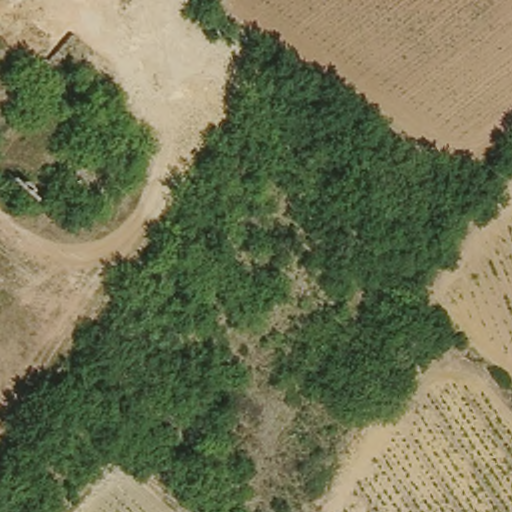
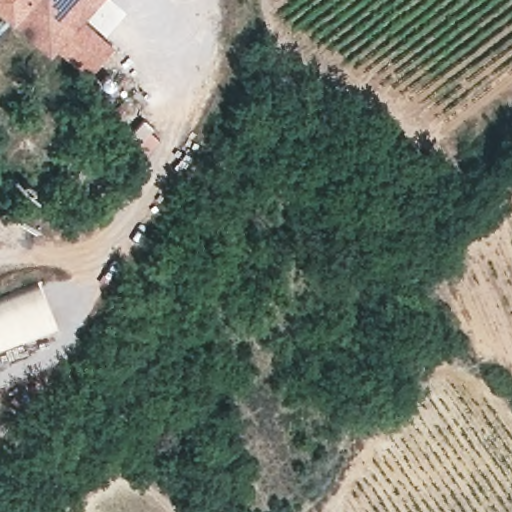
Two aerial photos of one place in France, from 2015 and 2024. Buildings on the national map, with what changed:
new [(115,46),(91,73),(60,45),(51,55),(14,24),(0,12),(0,0),(99,0),(82,19),(115,46)]
new [(0,300),(40,283),(59,327),(0,352),(0,300)]

